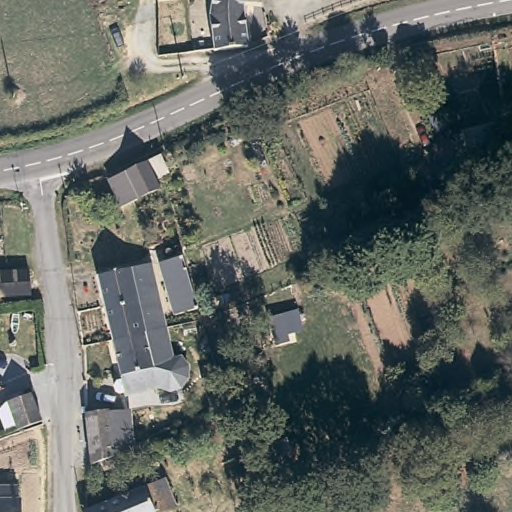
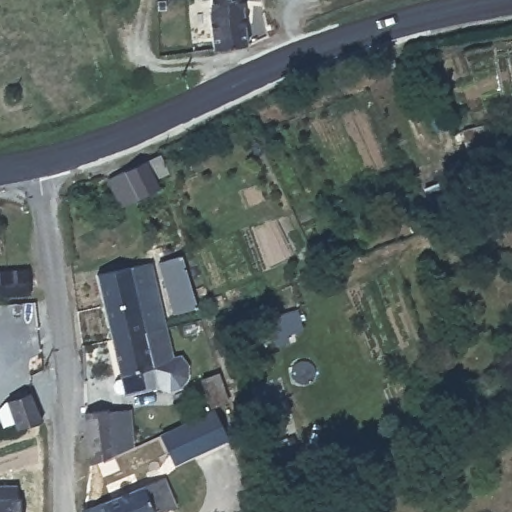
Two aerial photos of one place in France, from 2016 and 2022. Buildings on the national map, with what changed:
unchanged [(240,44),(220,47),(210,49),(207,0),(239,0),(238,15),(240,44)]
unchanged [(486,122),(494,148),(461,158),(454,132),(486,122)]
unchanged [(159,155),(168,175),(156,181),(159,190),(156,192),(158,194),(160,197),(159,201),(157,204),(154,206),(150,206),(146,205),(144,202),(143,197),(117,208),(105,180),(159,155)]
unchanged [(183,257),(191,288),(197,308),(172,316),(157,264),(183,257)]
unchanged [(148,263),(162,328),(109,339),(95,275),(148,263)]
unchanged [(33,293),(0,296),(0,271),(31,270),(33,293)]
unchanged [(187,365),(183,378),(177,387),(166,390),(154,386),(121,394),(120,391),(116,391),(113,392),(110,389),(109,383),(110,381),(111,379),(117,377),(109,339),(162,328),(169,360),(177,358),(187,365)]
unchanged [(28,392),(39,421),(13,430),(3,401),(28,392)]
unchanged [(106,410),(127,408),(131,446),(110,456),(88,464),(86,464),(81,409),(106,407),(106,410)]
new [(215,410),(229,439),(174,465),(159,436),(215,410)]
unchanged [(162,480),(174,508),(165,512),(84,512),(162,480)]
unchanged [(15,501),(17,501),(17,512),(0,512),(0,489),(14,489),(15,501)]

